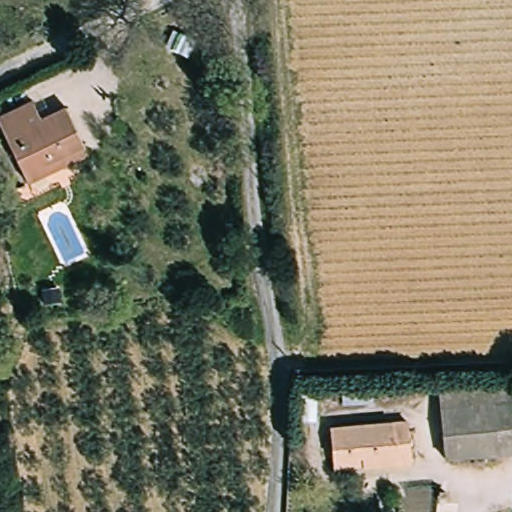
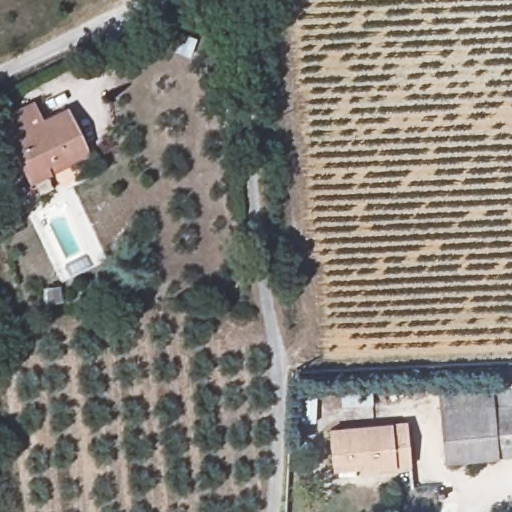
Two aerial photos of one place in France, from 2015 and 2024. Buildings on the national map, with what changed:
unchanged [(54,167),(28,179),(0,123),(0,115),(32,98),(41,116),(70,102),(89,142),(93,149),(54,167)]
unchanged [(445,441),(444,390),(496,388),(496,440),(445,441)]
unchanged [(512,388),(512,439),(496,440),(496,388),(512,388)]
unchanged [(330,425),(408,422),(409,462),(331,464),(330,425)]

